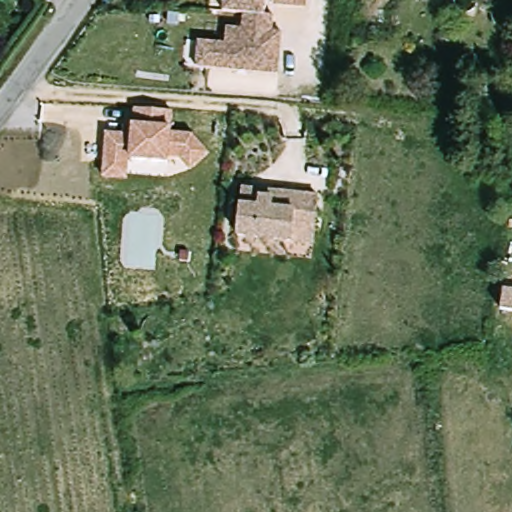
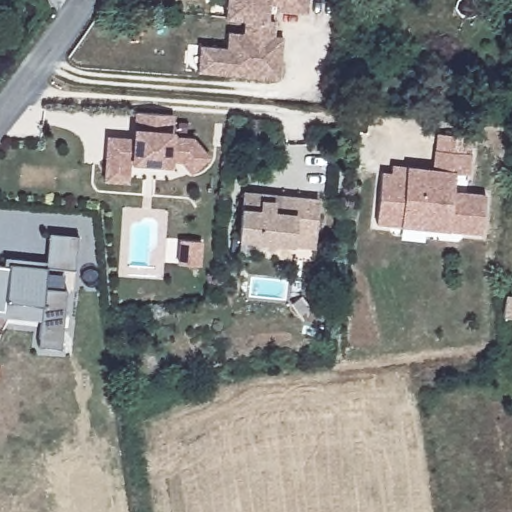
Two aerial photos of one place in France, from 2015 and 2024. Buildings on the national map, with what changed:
unchanged [(228,53),(231,36),(246,38),(247,22),(228,20),(230,0),(303,0),(300,19),(269,15),(268,26),(276,27),(274,44),(284,45),(280,86),(198,76),(201,50),(228,53)]
unchanged [(176,114),(173,131),(194,136),(211,157),(190,175),(180,162),(171,159),(171,165),(131,163),(129,183),(103,181),(107,136),(132,136),(133,127),(136,111),(176,114)]
new [(435,148),(436,133),(472,136),(471,151),(435,148)]
new [(448,232),(400,226),(375,223),(381,171),(390,172),(391,164),(406,166),(431,168),(434,150),(473,154),(471,174),(455,173),(453,191),(486,195),(481,236),(448,232)]
unchanged [(296,253),(242,248),(245,201),(255,202),(276,204),(320,208),(317,242),(316,255),(296,253)]
new [(50,229),(80,231),(78,266),(48,264),(50,229)]
new [(182,236),(202,238),(200,267),(180,266),(182,236)]
new [(12,264),(12,262),(23,262),(48,264),(48,286),(70,287),(67,347),(43,346),(45,317),(10,315),(10,310),(0,309),(0,264),(12,264)]

